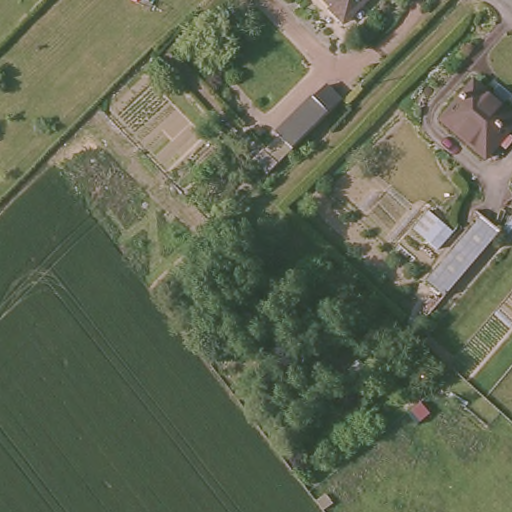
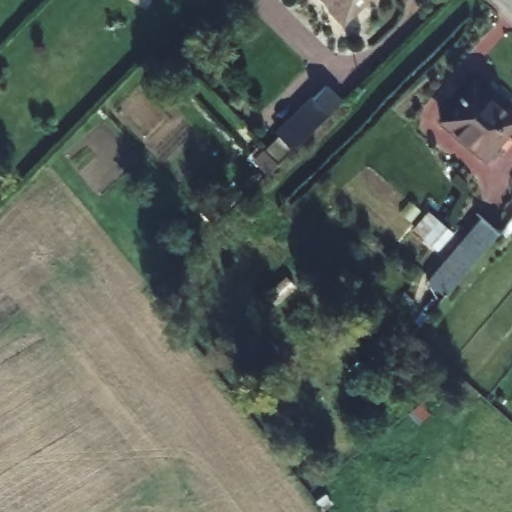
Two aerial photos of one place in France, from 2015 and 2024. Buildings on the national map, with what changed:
unchanged [(319,0),(382,0),(350,32),(319,0)]
unchanged [(277,132),(323,87),(343,106),(295,153),(277,132)]
unchanged [(489,164),(445,125),(478,88),(512,117),(512,138),(489,164)]
unchanged [(428,283),(484,219),(501,234),(445,299),(428,283)]

